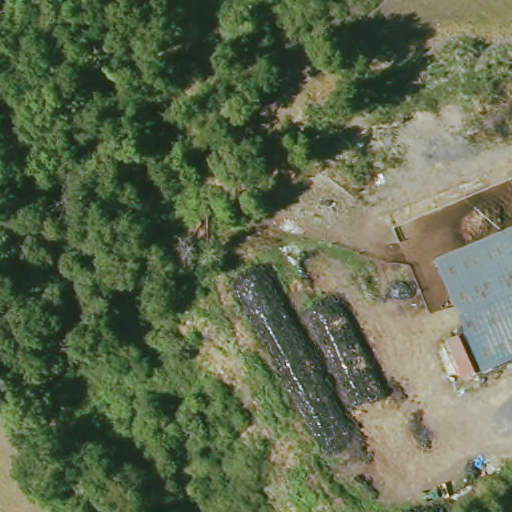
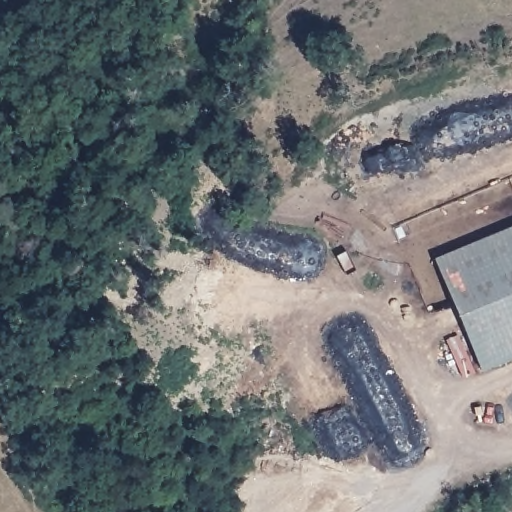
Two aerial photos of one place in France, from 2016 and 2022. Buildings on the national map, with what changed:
unchanged [(512,235),(512,365),(487,376),(442,264),(512,235)]

